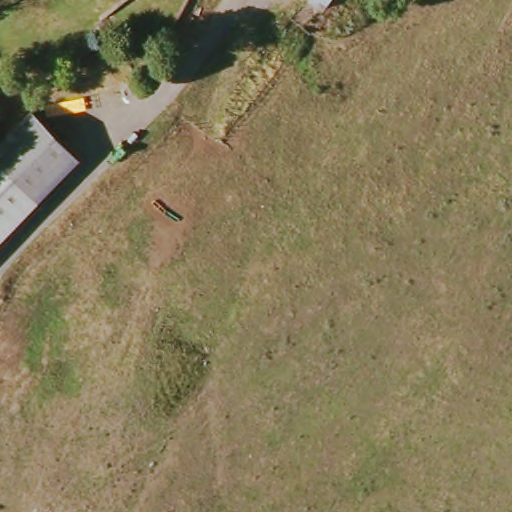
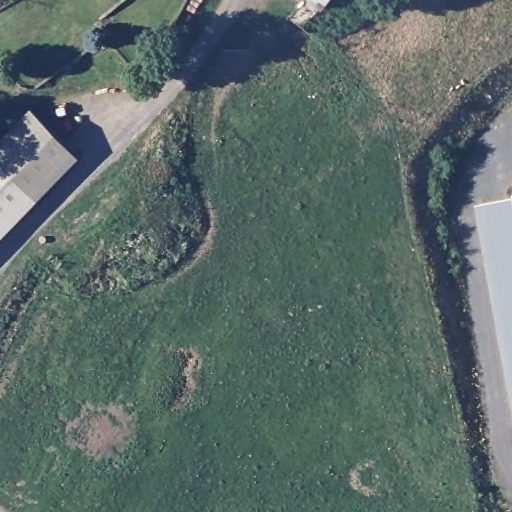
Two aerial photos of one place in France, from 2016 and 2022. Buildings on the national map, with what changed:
unchanged [(70,149),(36,187),(0,228),(0,130),(21,106),(70,149)]
new [(476,206),(512,199),(512,394),(476,206)]

